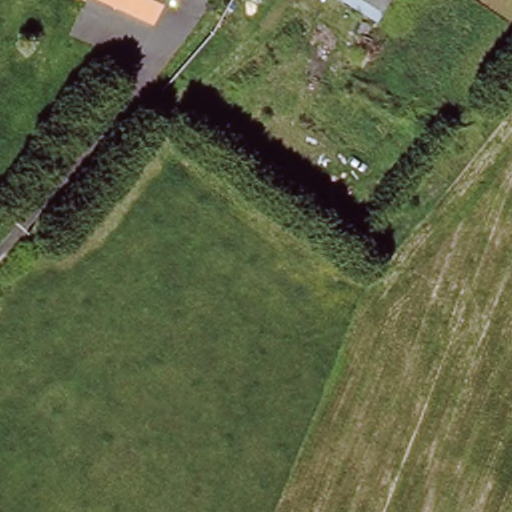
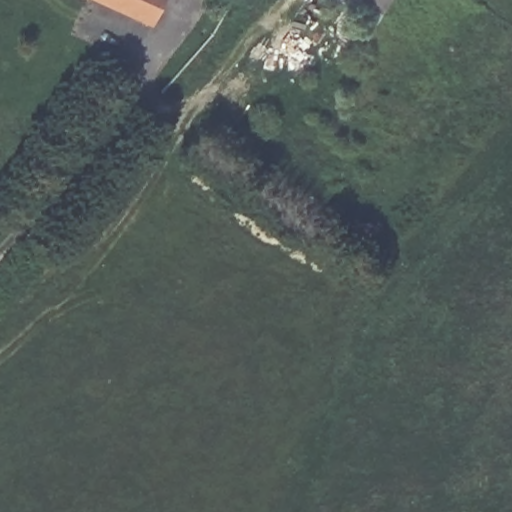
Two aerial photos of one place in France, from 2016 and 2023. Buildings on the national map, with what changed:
unchanged [(151,21),(106,0),(161,0),(151,21)]
unchanged [(379,24),(340,0),(392,0),(379,24)]

